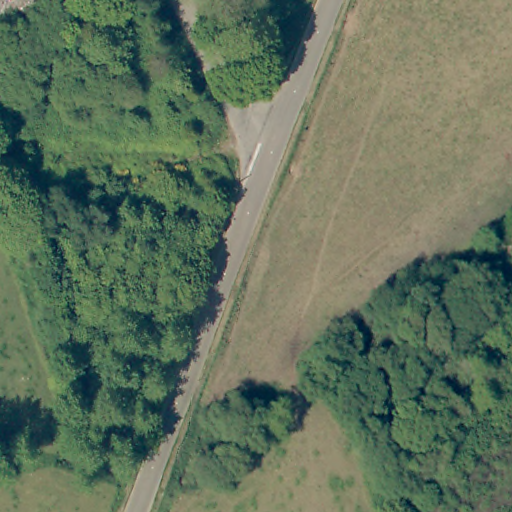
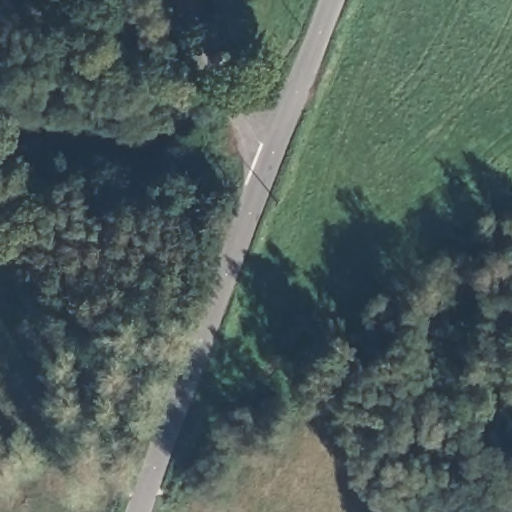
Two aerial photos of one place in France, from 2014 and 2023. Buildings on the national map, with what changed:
unchanged [(1,169),(22,160),(33,188),(13,196),(1,169)]

